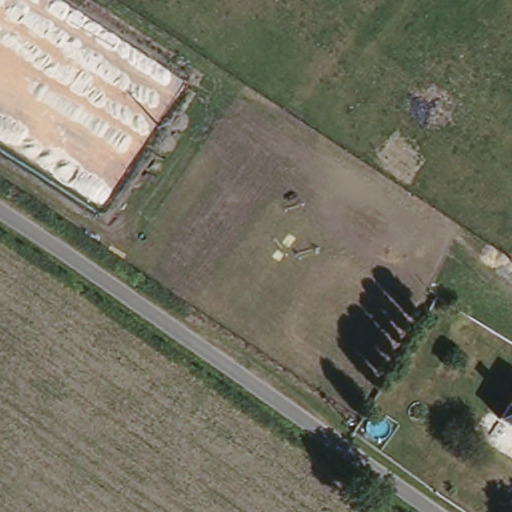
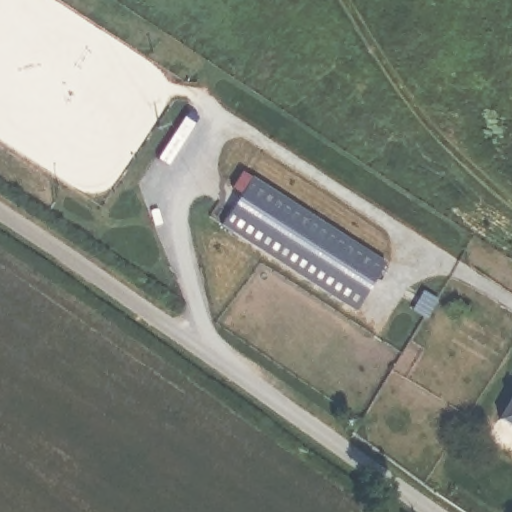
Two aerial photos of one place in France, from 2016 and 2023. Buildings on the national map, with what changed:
new [(222,224),(243,191),(234,184),(245,169),(385,262),(353,309),(222,224)]
unchanged [(512,422),(496,413),(512,386),(512,422)]

